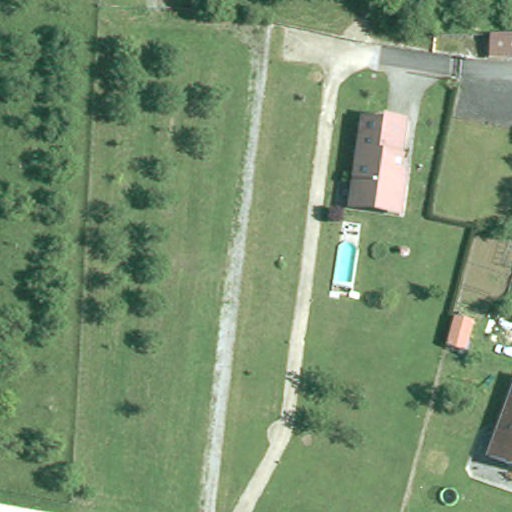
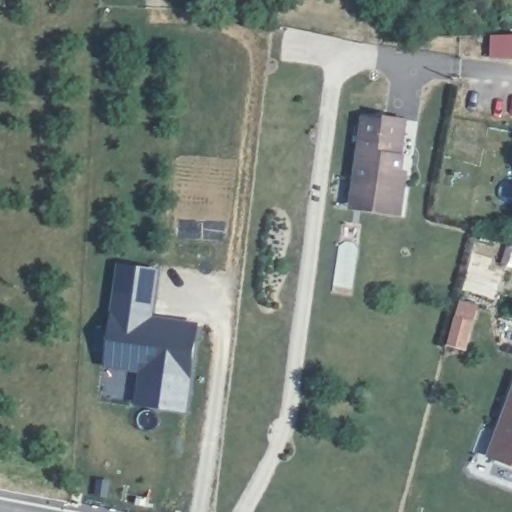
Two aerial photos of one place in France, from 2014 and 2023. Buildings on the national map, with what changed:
unchanged [(495,61),(497,40),(512,39),(512,63),(495,61)]
unchanged [(352,208),(355,180),(364,118),(384,121),(384,116),(406,119),(401,155),(404,155),(401,171),(406,171),(404,185),(401,207),(400,214),(352,208)]
new [(186,411),(133,403),(138,372),(102,366),(115,262),(160,269),(154,315),(198,321),(186,411)]
unchanged [(489,456),(512,396),(512,464),(489,456)]

